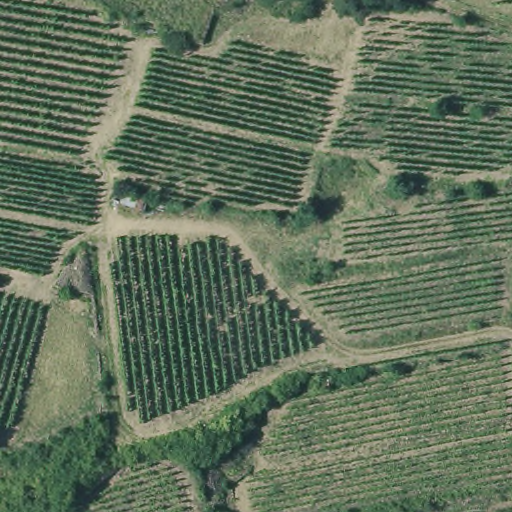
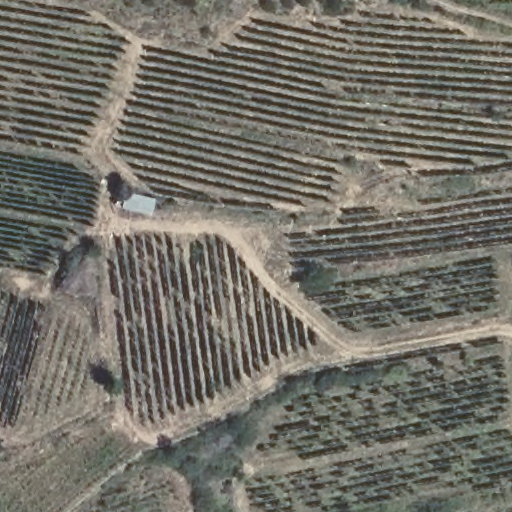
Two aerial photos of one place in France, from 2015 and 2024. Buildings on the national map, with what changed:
unchanged [(149,211),(123,206),(127,190),(155,195),(149,211)]

